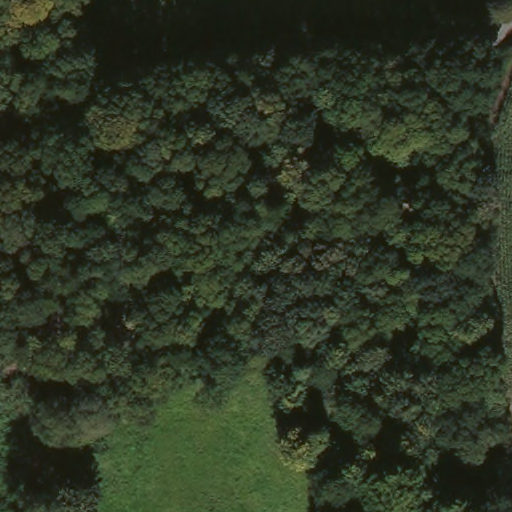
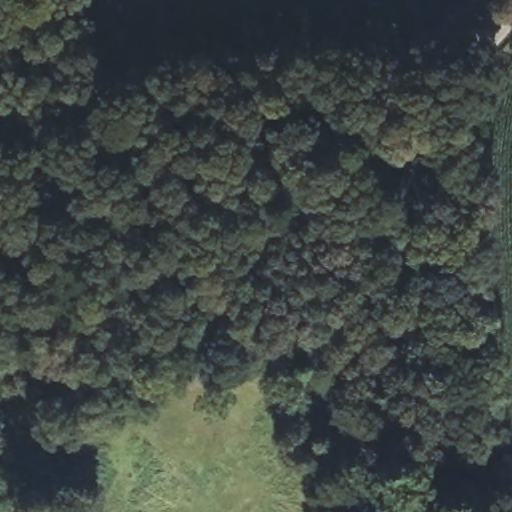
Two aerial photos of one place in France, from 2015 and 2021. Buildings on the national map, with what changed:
[]

